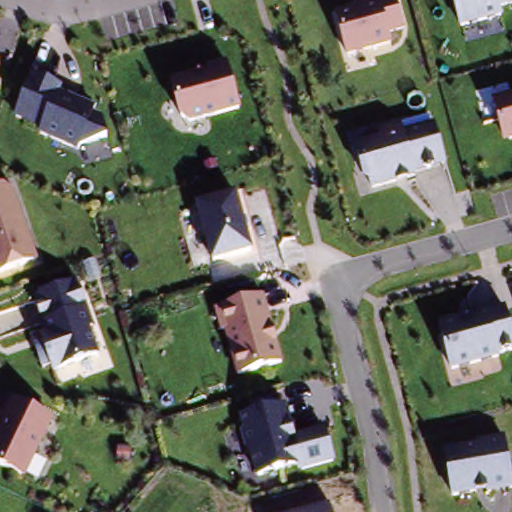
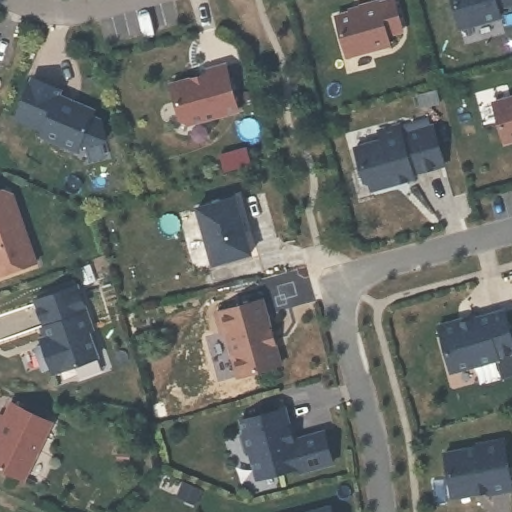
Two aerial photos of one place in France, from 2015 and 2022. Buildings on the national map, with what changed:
unchanged [(504,19),(464,30),(456,0),(512,0),(512,8),(501,11),(504,19)]
unchanged [(350,62),(339,24),(358,19),(357,14),(383,7),(383,10),(401,5),(409,36),(392,41),(394,51),(350,62)]
unchanged [(216,76),(215,73),(234,67),(246,112),(198,126),(188,120),(179,86),(216,76)]
unchanged [(69,93),(65,104),(81,111),(83,107),(103,115),(100,121),(109,125),(114,144),(87,150),(85,155),(48,138),(51,132),(24,121),(41,81),(69,93)]
unchanged [(512,102),(512,147),(507,144),(497,106),(512,102)]
unchanged [(366,184),(360,164),(355,165),(349,144),(375,137),(373,127),(393,121),(396,131),(427,122),(439,165),(407,173),(395,176),(366,184)]
unchanged [(39,267),(0,279),(0,194),(13,190),(39,267)]
unchanged [(239,204),(254,260),(215,270),(200,215),(239,204)]
unchanged [(51,337),(48,327),(51,327),(42,300),(83,286),(99,328),(94,330),(104,357),(60,372),(58,367),(49,370),(41,348),(50,345),(47,338),(51,337)]
unchanged [(256,291),(274,356),(231,367),(219,321),(215,322),(210,303),(256,291)]
unchanged [(466,322),(467,324),(511,312),(512,316),(512,356),(504,358),(504,361),(458,373),(445,327),(466,322)]
unchanged [(56,423),(27,480),(0,466),(0,447),(5,438),(0,436),(0,424),(5,415),(10,417),(18,403),(56,423)]
unchanged [(258,482),(240,417),(286,405),(295,436),(325,428),(335,462),(258,482)]
unchanged [(512,490),(453,500),(446,453),(481,448),(480,443),(504,438),(512,490)]
unchanged [(332,505),(334,512),(307,512),(332,505)]

